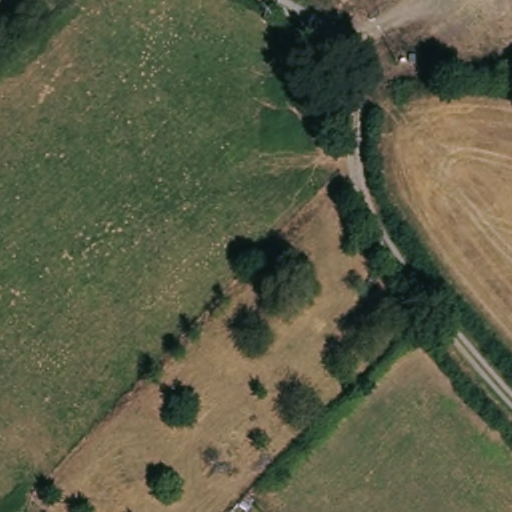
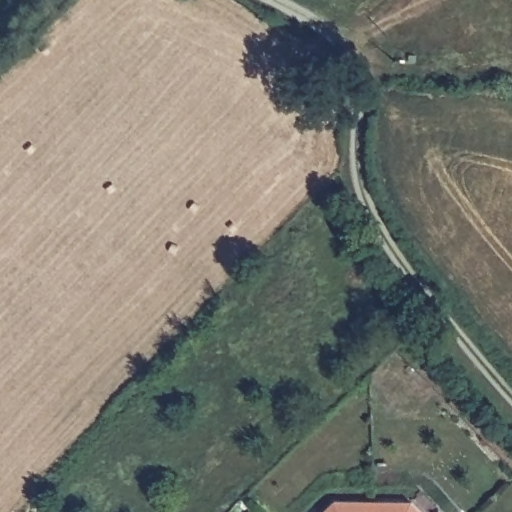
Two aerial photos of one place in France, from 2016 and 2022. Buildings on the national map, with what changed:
new [(415,503),(423,512),(323,512),(335,500),(415,503)]

